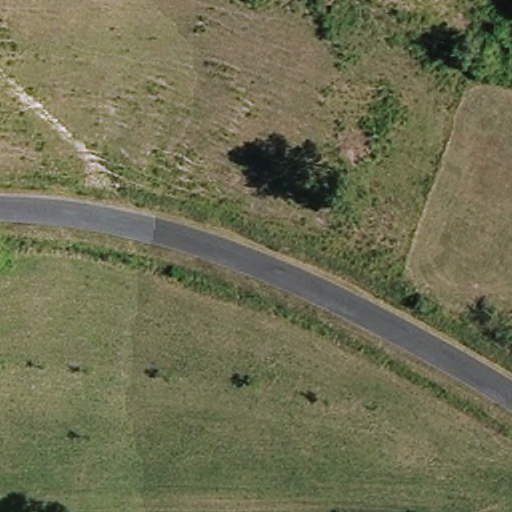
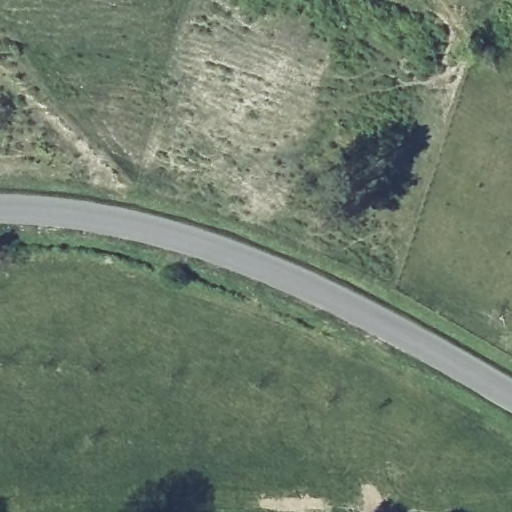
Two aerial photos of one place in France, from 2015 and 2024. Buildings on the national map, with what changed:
[]

